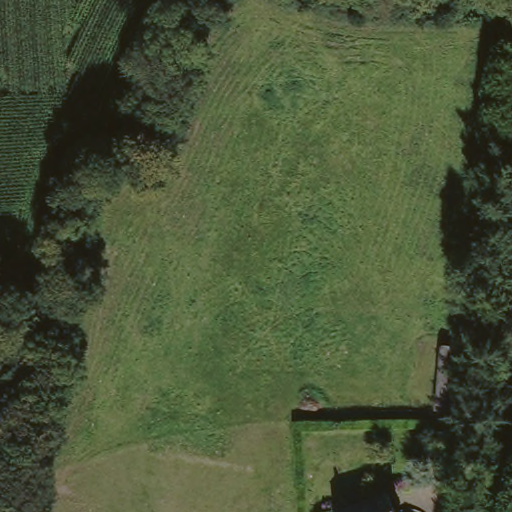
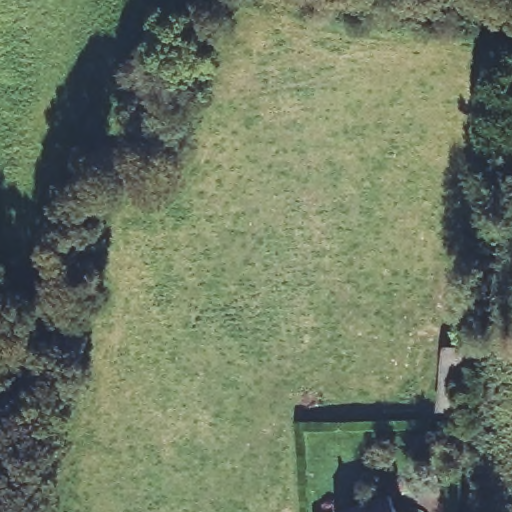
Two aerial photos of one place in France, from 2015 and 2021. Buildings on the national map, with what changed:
unchanged [(474,363),(466,428),(443,425),(451,360),(474,363)]
unchanged [(390,488),(396,512),(335,512),(333,503),(390,488)]

